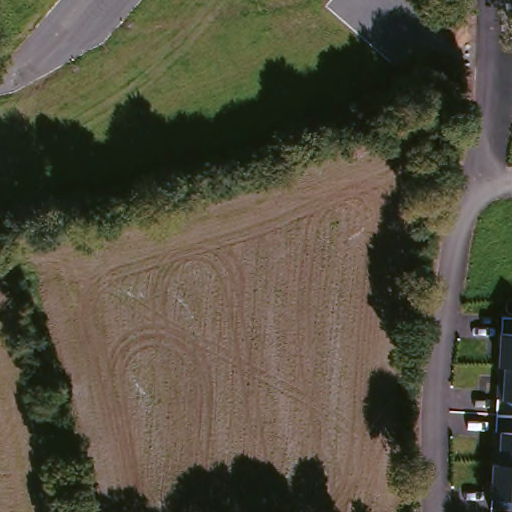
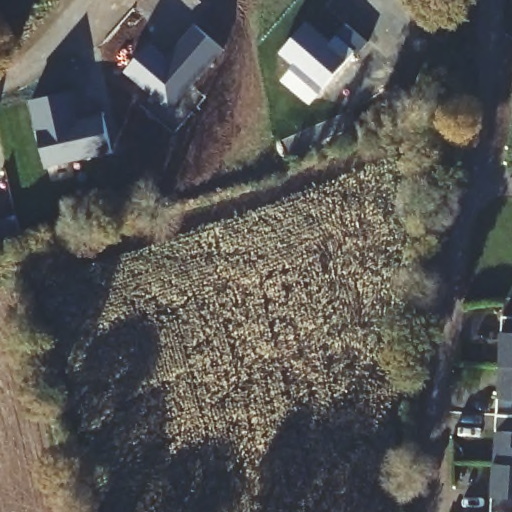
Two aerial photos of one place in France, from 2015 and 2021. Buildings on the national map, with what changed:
new [(147,45),(168,62),(172,56),(169,54),(193,25),(221,49),(169,111),(124,74),(147,45)]
new [(304,25),(328,45),(334,38),(353,53),(319,94),(290,70),(293,66),(279,54),(304,25)]
new [(71,92),(79,122),(102,116),(111,153),(46,168),(29,103),(71,92)]
new [(63,216),(68,240),(49,245),(44,221),(63,216)]
unchanged [(512,512),(491,512),(491,498),(493,464),(498,464),(499,445),(494,445),(497,384),(504,383),(504,368),(498,367),(501,334),(502,318),(512,319),(512,512)]

